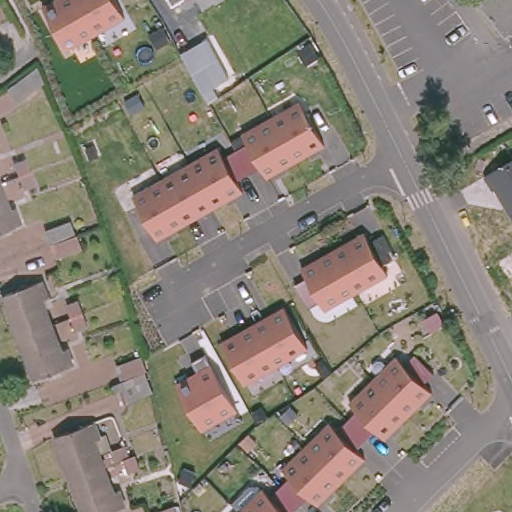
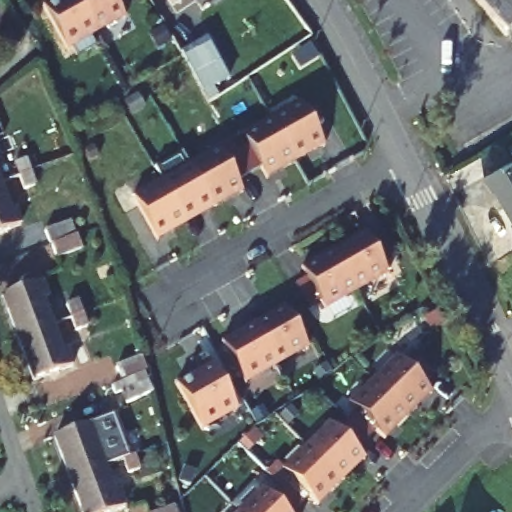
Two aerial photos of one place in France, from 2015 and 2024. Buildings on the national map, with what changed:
unchanged [(66,49),(40,3),(47,0),(115,0),(124,17),(66,49)]
unchanged [(170,0),(181,0),(173,5),(170,0)]
unchanged [(481,0),(512,0),(512,26),(506,31),(481,0)]
unchanged [(206,42),(226,84),(201,99),(182,59),(206,42)]
unchanged [(242,134),(305,101),(325,145),(263,176),(242,134)]
unchanged [(131,195),(221,145),(243,192),(155,241),(131,195)]
unchanged [(495,189),(492,190),(482,175),(512,158),(512,220),(495,189)]
unchanged [(13,163),(25,159),(30,171),(35,184),(23,189),(18,176),(13,163)]
unchanged [(10,210),(16,227),(0,233),(0,205),(3,213),(10,210)]
unchanged [(85,246),(60,256),(55,242),(51,244),(46,231),(73,221),(78,234),(80,233),(85,246)]
unchanged [(305,270),(366,236),(385,273),(323,306),(305,270)]
unchanged [(0,295),(0,293),(36,280),(42,297),(36,299),(45,324),(14,335),(0,295)]
unchanged [(65,304),(76,300),(81,313),(86,325),(75,330),(70,317),(65,304)]
unchanged [(222,342),(288,308),(305,348),(240,381),(222,342)]
unchanged [(45,324),(55,350),(61,347),(67,364),(29,378),(15,337),(14,335),(45,324)]
unchanged [(346,404),(395,354),(430,391),(382,440),(346,404)]
unchanged [(118,365),(144,356),(150,368),(123,378),(118,365)]
unchanged [(177,387),(216,367),(236,409),(198,429),(177,387)]
unchanged [(147,371),(155,390),(130,401),(125,388),(118,391),(115,385),(147,371)]
unchanged [(280,471),(328,422),(362,457),(317,506),(280,471)]
unchanged [(71,481),(70,479),(56,439),(92,426),(98,443),(93,445),(102,470),(71,481)]
unchanged [(117,446),(129,442),(133,454),(131,455),(121,458),(117,446)]
unchanged [(102,471),(111,496),(118,494),(125,511),(122,512),(82,512),(71,482),(102,471)]
unchanged [(261,484),(289,512),(235,512),(261,484)]
unchanged [(175,503),(178,512),(152,512),(175,503)]

